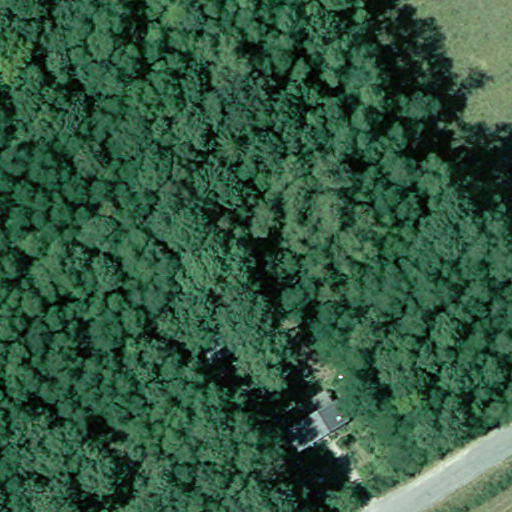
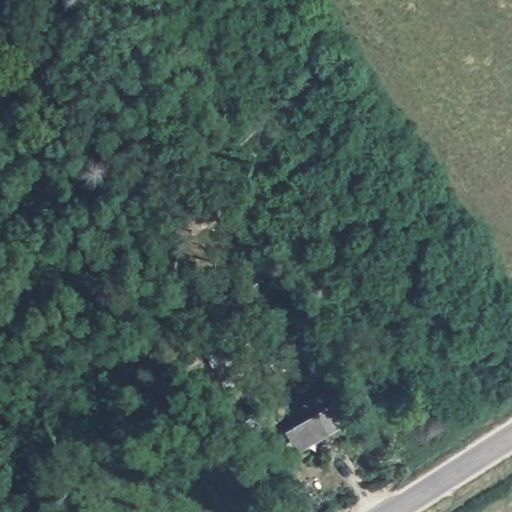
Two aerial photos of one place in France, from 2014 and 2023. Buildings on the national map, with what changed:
unchanged [(287,453),(264,421),(332,386),(350,413),(287,453)]

